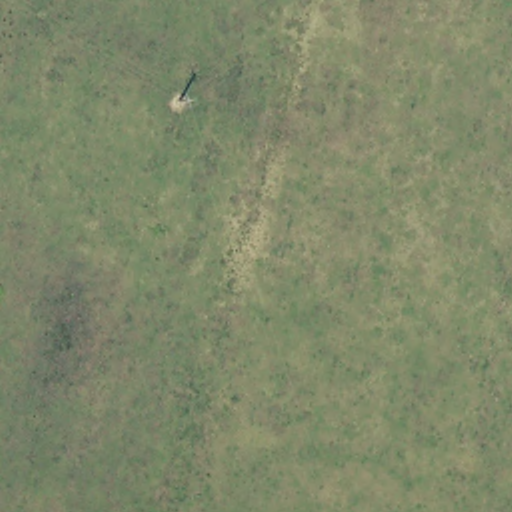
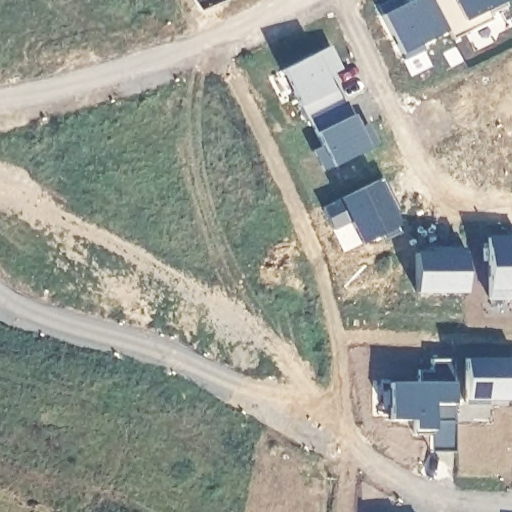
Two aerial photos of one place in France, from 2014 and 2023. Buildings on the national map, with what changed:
new [(420,43),(422,50),(402,60),(376,6),(388,0),(399,0),(401,4),(410,0),(432,0),(447,30),(420,43)]
new [(506,5),(489,14),(492,19),(451,39),(432,0),(503,0),(506,5)]
new [(307,118),(306,120),(281,70),(330,46),(341,69),(326,76),(332,89),(334,87),(341,102),(307,118)]
new [(347,99),(358,127),(367,123),(377,144),(322,171),(312,150),(321,146),(307,118),(341,102),(347,99)]
new [(400,212),(392,215),(400,232),(382,241),(378,234),(361,243),(350,221),(332,229),(322,206),(382,177),(400,212)]
new [(510,288),(510,298),(488,298),(487,237),(510,237),(510,247),(512,247),(512,288),(510,288)]
new [(465,292),(415,292),(415,252),(433,252),(433,247),(465,247),(465,292)]
new [(429,451),(430,433),(413,433),(413,419),(390,420),(390,382),(418,382),(418,369),(431,369),(431,358),(454,357),(455,451),(429,451)]
new [(487,399),(487,403),(465,403),(465,357),(512,358),(512,399),(487,399)]

